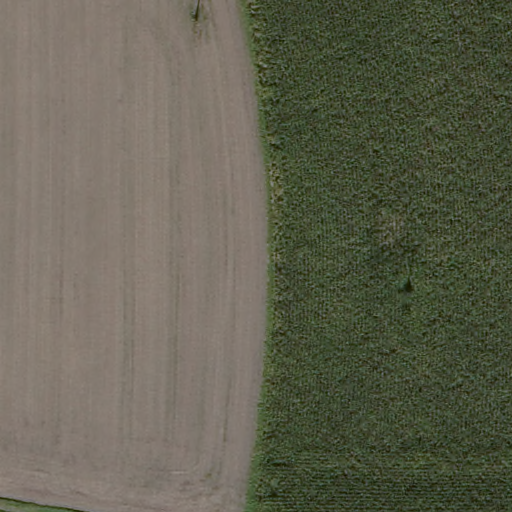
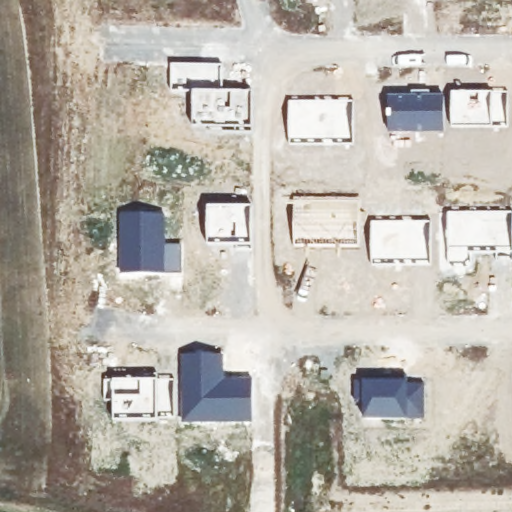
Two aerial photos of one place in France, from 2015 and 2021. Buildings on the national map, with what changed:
new [(171,64),(222,66),(222,92),(244,92),(244,99),(252,99),(252,133),(208,133),(208,128),(191,128),(192,93),(170,92),(171,64)]
new [(412,98),(412,92),(429,91),(429,98),(444,97),(445,132),(389,133),(388,98),(412,98)]
new [(508,92),(508,128),(452,128),(452,93),(508,92)]
new [(289,102),(354,102),(354,146),(289,146),(289,102)]
new [(295,202),(359,203),(359,247),(295,246),(295,202)]
new [(208,207),(252,207),(252,252),(236,252),(236,246),(208,247),(208,207)]
new [(182,275),(164,275),(121,275),(121,214),(164,214),(164,246),(182,246),(182,275)]
new [(512,214),(512,263),(496,263),(496,255),(472,255),(472,266),(467,270),(453,270),(448,265),(448,214),(512,214)]
new [(371,223),(431,224),(431,267),(371,267),(371,223)]
new [(222,356),(222,381),(252,381),(253,423),(183,423),(183,356),(222,356)]
new [(448,370),(476,369),(476,381),(486,381),(485,377),(505,377),(505,436),(485,437),(485,427),(448,426),(448,370)]
new [(105,382),(137,382),(137,376),(158,376),(158,382),(175,382),(175,420),(158,420),(158,422),(114,422),(114,403),(104,403),(105,382)]
new [(375,383),(375,377),(387,377),(407,377),(407,385),(425,385),(425,420),(364,420),(364,404),(355,404),(355,383),(375,383)]

